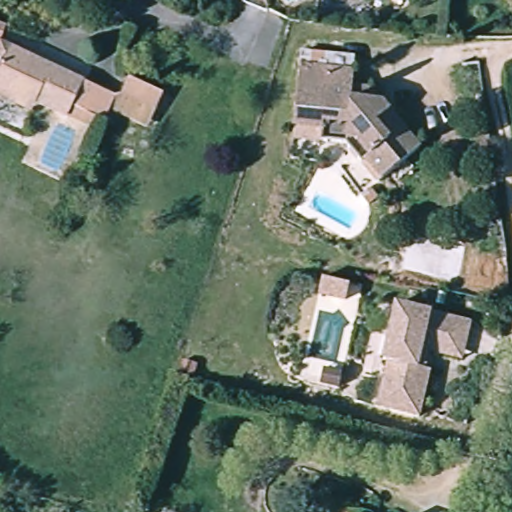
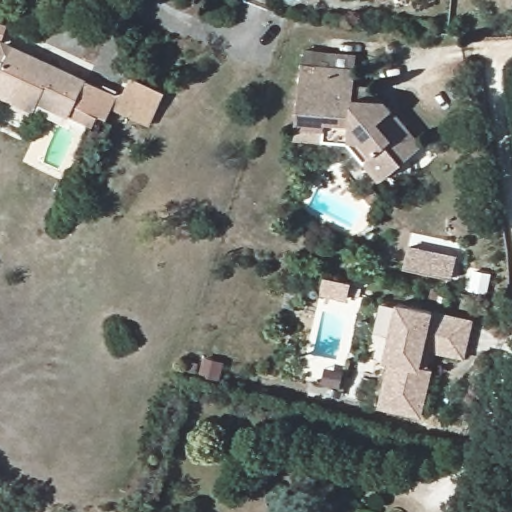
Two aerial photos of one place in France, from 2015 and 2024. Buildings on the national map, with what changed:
unchanged [(9,50),(125,105),(113,129),(103,125),(98,136),(44,110),(40,119),(0,101),(0,67),(8,50),(0,48),(0,29),(15,34),(9,50)]
unchanged [(355,67),(426,151),(383,189),(338,136),(295,133),(297,67),(355,67)]
unchanged [(172,101),(165,117),(131,101),(138,85),(172,101)]
unchanged [(448,317),(440,354),(434,352),(430,371),(435,372),(424,418),(383,409),(393,363),(388,362),(401,307),(448,317)]
unchanged [(475,323),(467,360),(440,354),(448,317),(475,323)]

